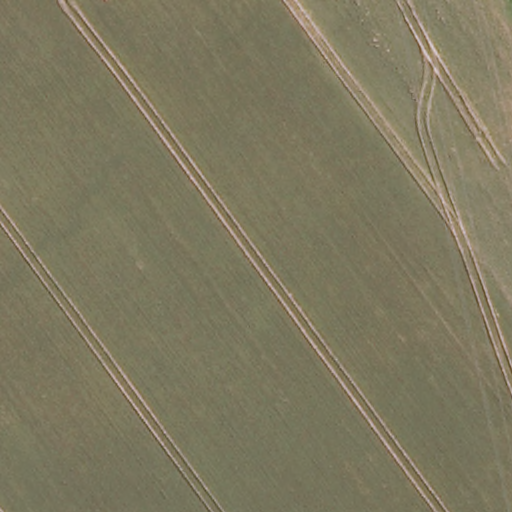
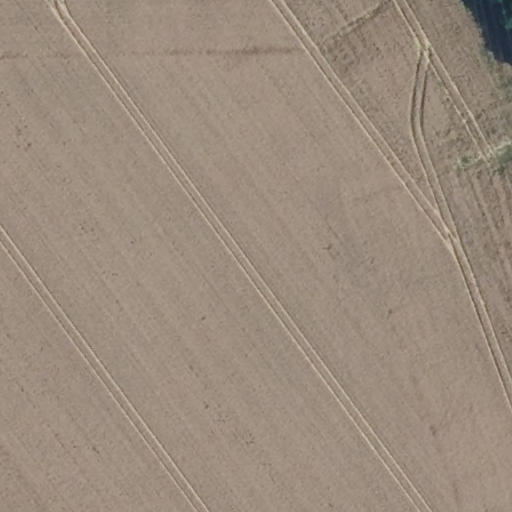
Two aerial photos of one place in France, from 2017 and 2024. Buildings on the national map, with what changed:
[]

